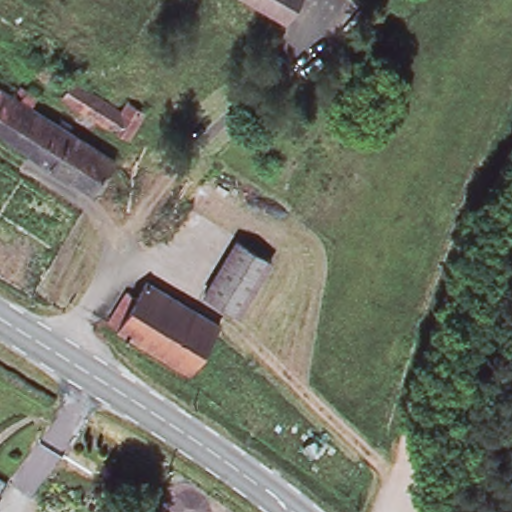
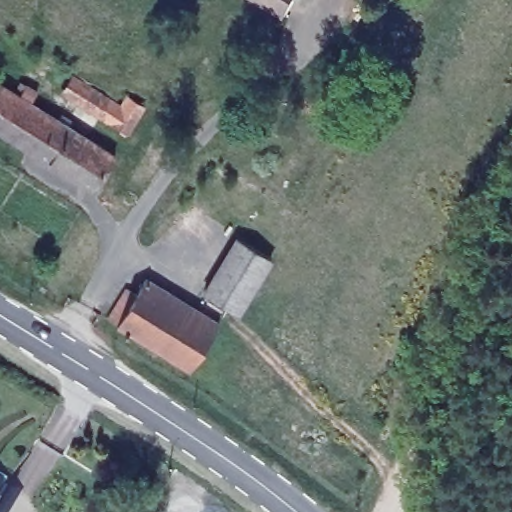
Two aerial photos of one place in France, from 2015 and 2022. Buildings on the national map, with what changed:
unchanged [(288,11),(270,0),(297,0),(290,12),(288,11)]
unchanged [(83,85),(112,103),(119,93),(135,103),(119,129),(74,101),(83,85)]
unchanged [(16,102),(24,91),(34,98),(27,109),(32,112),(11,144),(0,137),(0,92),(16,102)]
unchanged [(32,112),(110,161),(90,194),(11,144),(32,112)]
unchanged [(239,242),(272,263),(238,316),(205,295),(239,242)]
unchanged [(219,322),(190,369),(132,332),(130,336),(126,334),(128,330),(119,324),(110,318),(121,297),(127,287),(137,293),(146,278),(219,322)]
unchanged [(3,485),(0,491),(0,483),(3,485)]

